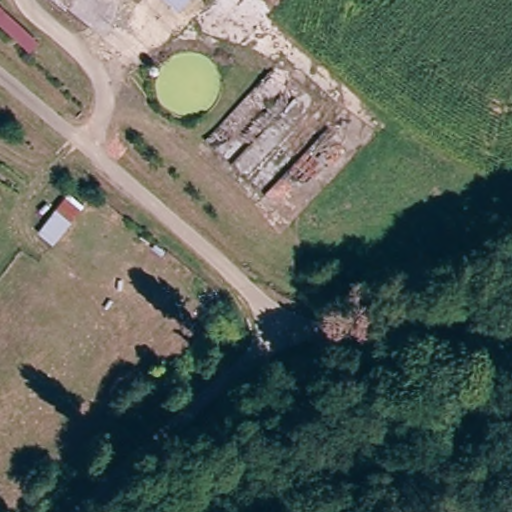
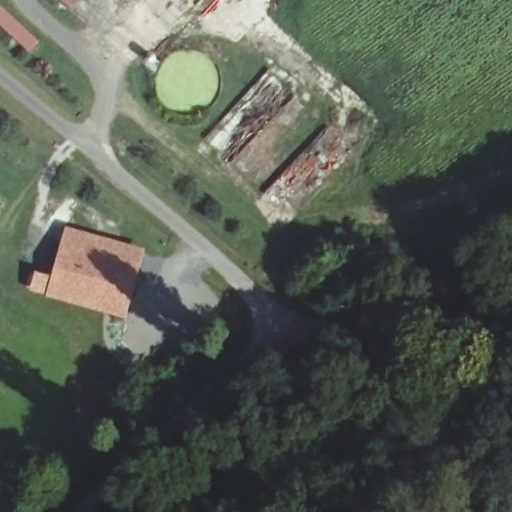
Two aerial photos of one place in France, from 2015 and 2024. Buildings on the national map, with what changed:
unchanged [(172,0),(215,0),(196,21),(172,0)]
new [(61,243),(140,267),(125,319),(47,296),(61,243)]

